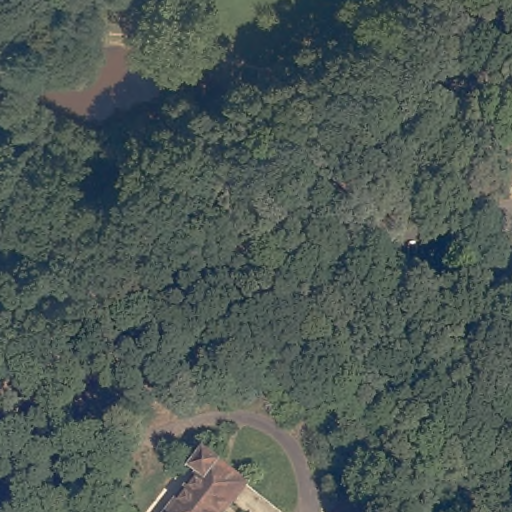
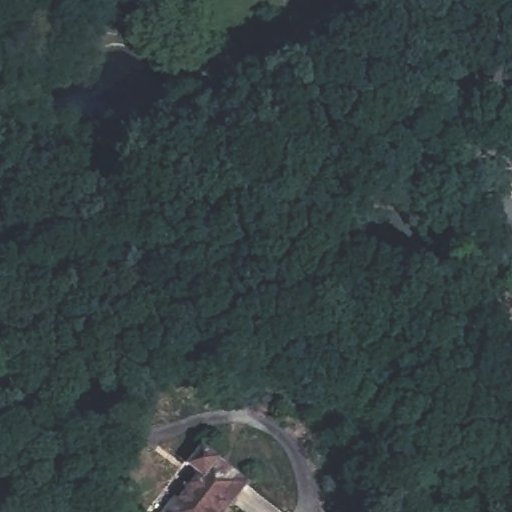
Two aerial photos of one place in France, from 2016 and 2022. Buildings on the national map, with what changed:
unchanged [(203,457),(195,452),(205,436),(253,464),(222,512),(167,512),(174,502),(203,457)]
unchanged [(334,499),(356,462),(378,475),(355,511),(334,499)]

